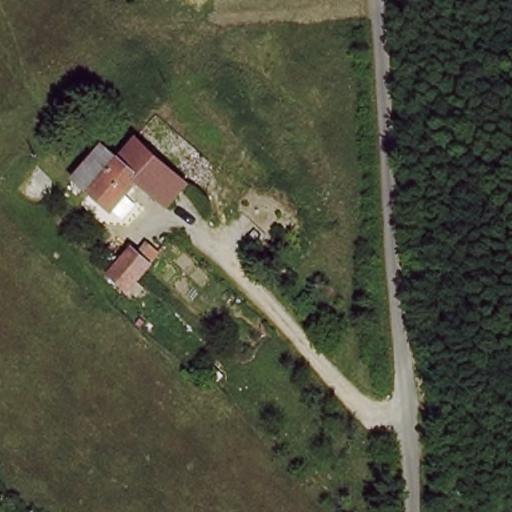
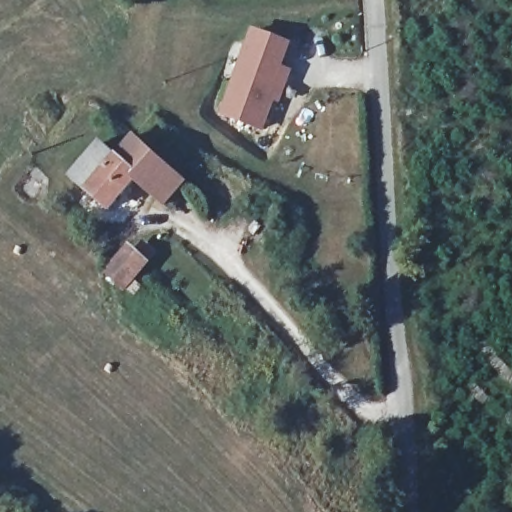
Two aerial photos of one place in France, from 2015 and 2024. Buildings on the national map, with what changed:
new [(255,30),(296,47),(286,68),(295,71),(281,105),(278,103),(265,133),(222,115),(255,30)]
unchanged [(78,180),(70,170),(104,130),(130,150),(90,194),(78,180)]
unchanged [(171,202),(141,177),(109,212),(90,194),(130,150),(141,138),(157,154),(188,182),(171,202)]
unchanged [(149,268),(143,283),(148,294),(138,303),(104,274),(130,250),(149,268)]

